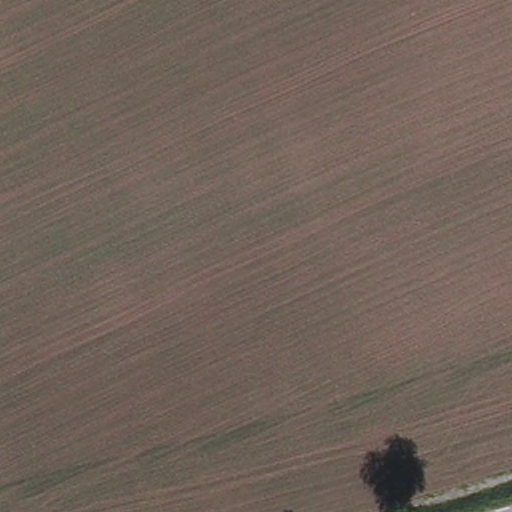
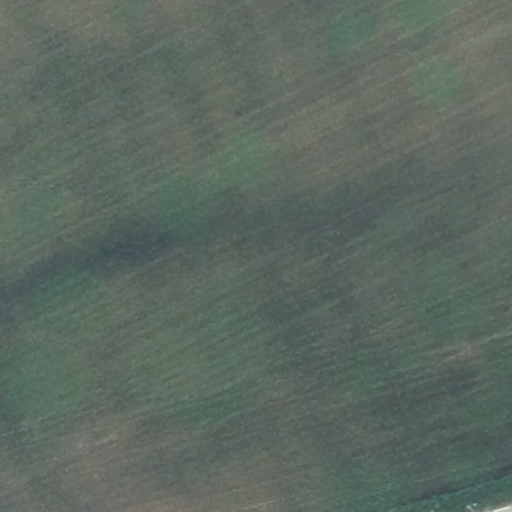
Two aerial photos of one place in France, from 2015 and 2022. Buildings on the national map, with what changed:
[]

